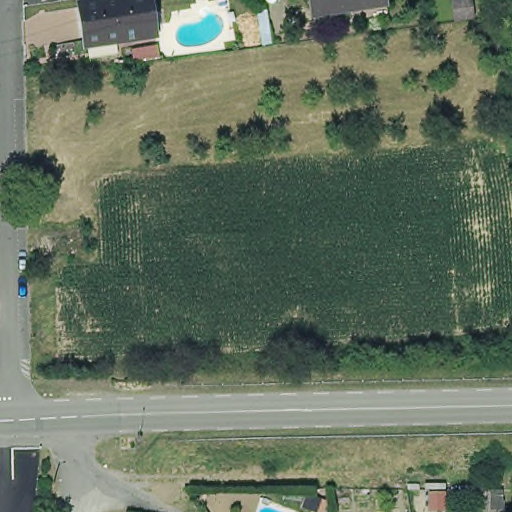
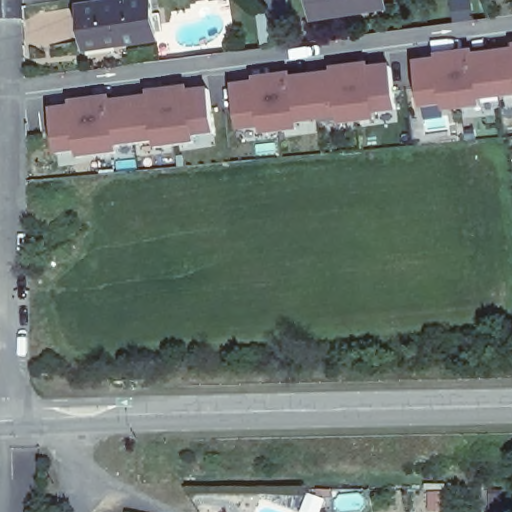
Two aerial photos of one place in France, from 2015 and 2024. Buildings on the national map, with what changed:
unchanged [(106,0),(157,0),(163,35),(92,46),(86,3),(106,0)]
unchanged [(390,3),(320,15),(318,0),(390,0),(390,3)]
new [(480,99),(481,107),(444,111),(442,104),(420,107),(414,65),(437,62),(437,57),(474,53),(475,57),(512,53),(512,96),(480,99)]
new [(376,115),(377,122),(339,126),(337,120),(299,125),(300,131),(262,136),(261,130),(240,132),(233,86),(254,83),(254,79),(292,74),(293,78),(332,73),(332,69),(370,64),(371,68),(392,65),(400,112),(376,115)]
new [(195,139),(195,144),(155,149),(154,143),(119,148),(120,154),(79,159),(77,154),(57,156),(52,109),(72,107),(70,102),(112,97),(112,101),(148,98),(147,93),(190,87),(190,92),(210,90),(217,136),(195,139)]
demolished [(25,268),(25,218),(72,219),(74,266),(25,268)]

